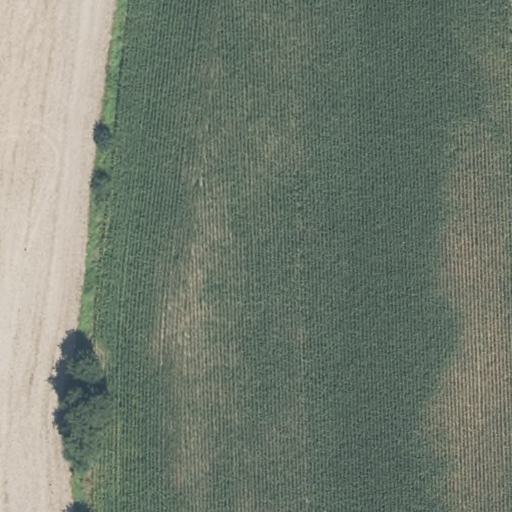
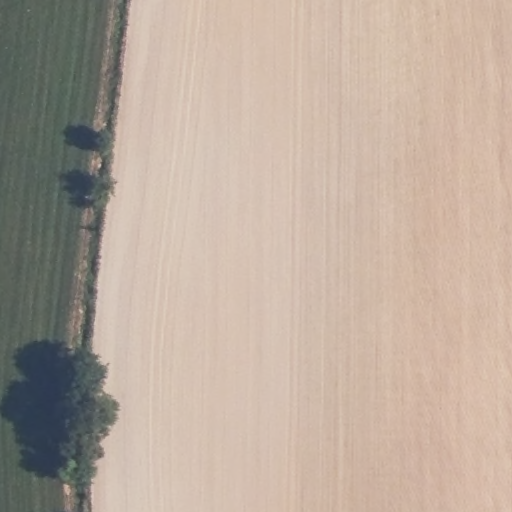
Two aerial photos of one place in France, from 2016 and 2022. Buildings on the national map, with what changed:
[]

